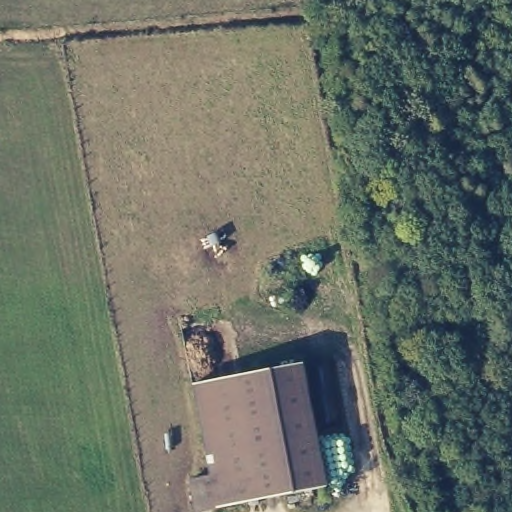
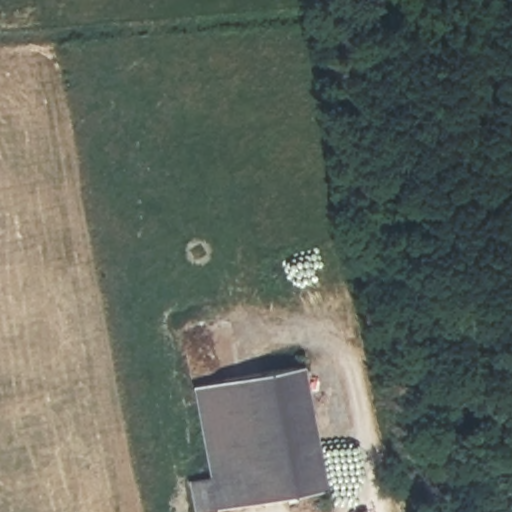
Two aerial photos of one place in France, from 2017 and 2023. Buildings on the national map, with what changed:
unchanged [(327,486),(200,509),(195,478),(216,475),(198,383),(305,362),(327,486)]

